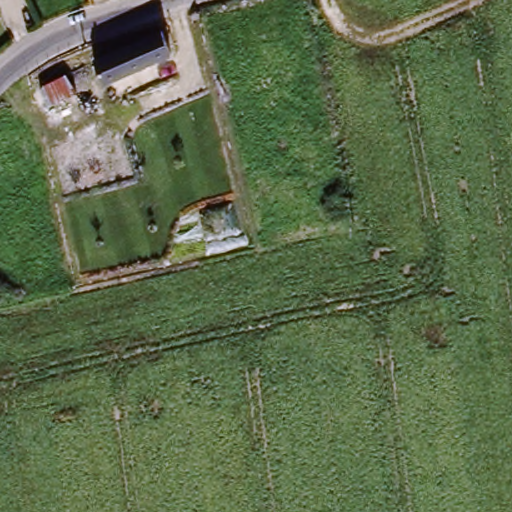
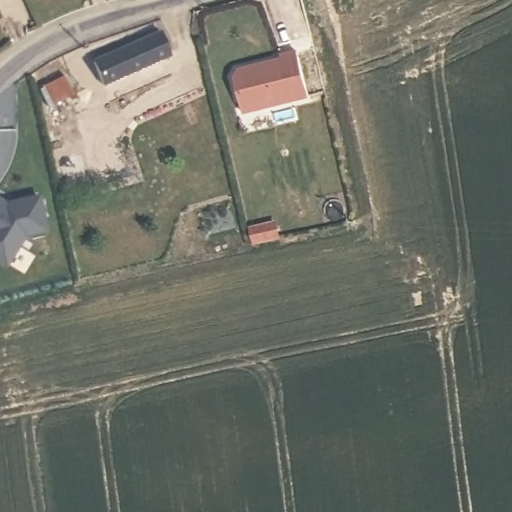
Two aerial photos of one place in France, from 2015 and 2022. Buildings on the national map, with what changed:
unchanged [(163,50),(111,78),(100,57),(152,29),(163,50)]
new [(330,99),(315,103),(313,97),(247,114),(238,77),(242,71),(286,60),(285,56),(319,48),(330,99)]
unchanged [(49,111),(37,92),(100,57),(111,78),(49,111)]
new [(30,235),(11,267),(0,260),(0,198),(11,205),(44,197),(51,231),(30,235)]

